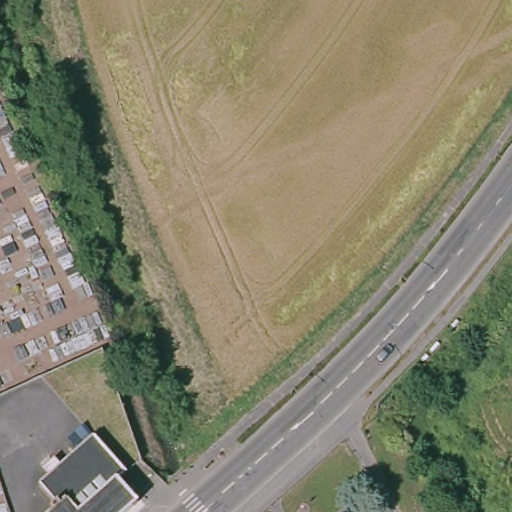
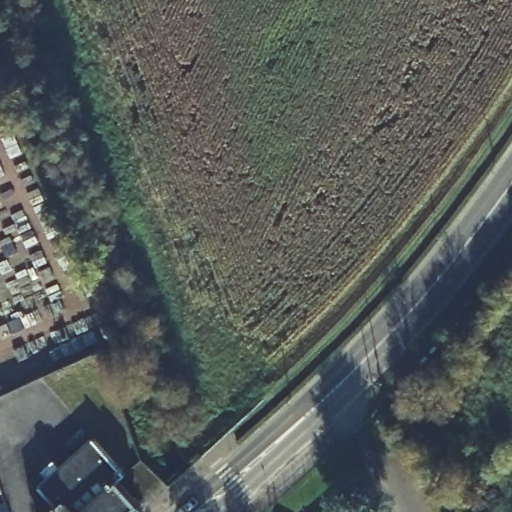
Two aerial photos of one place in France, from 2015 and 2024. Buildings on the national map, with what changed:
unchanged [(50,508),(35,488),(46,478),(40,471),(50,462),(57,469),(92,439),(125,476),(115,484),(135,507),(129,512),(45,512),(50,508)]

